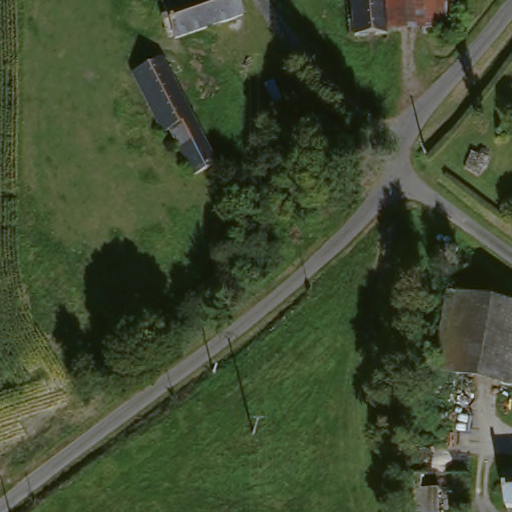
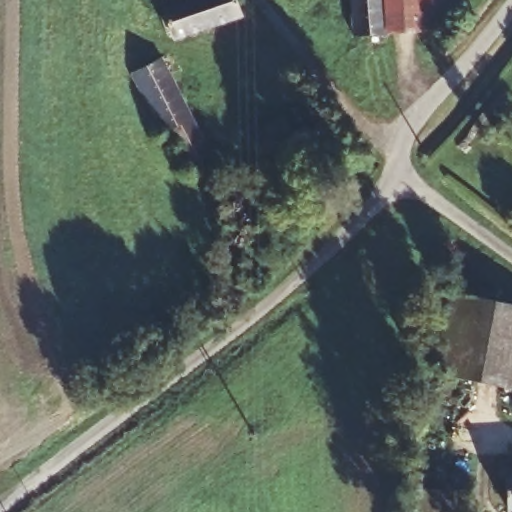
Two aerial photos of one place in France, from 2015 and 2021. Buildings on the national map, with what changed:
unchanged [(161,14),(164,10),(162,4),(175,0),(234,0),(238,11),(171,37),(161,14)]
unchanged [(384,35),(349,39),(346,0),(381,0),(384,35)]
unchanged [(387,0),(446,0),(447,30),(389,34),(387,0)]
unchanged [(162,63),(168,61),(174,75),(164,81),(211,169),(188,181),(183,172),(164,137),(159,140),(156,141),(139,103),(129,81),(136,77),(149,70),(162,63)]
unchanged [(459,299),(512,311),(512,392),(441,377),(453,324),(459,299)]
unchanged [(501,512),(494,479),(512,478),(512,512),(501,512)]
unchanged [(411,487),(441,487),(441,511),(411,511),(411,487)]

